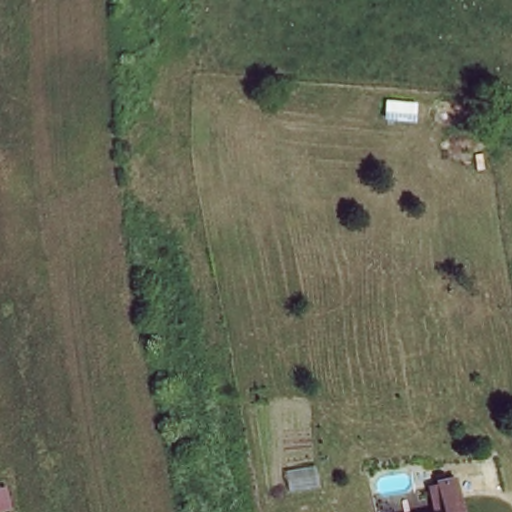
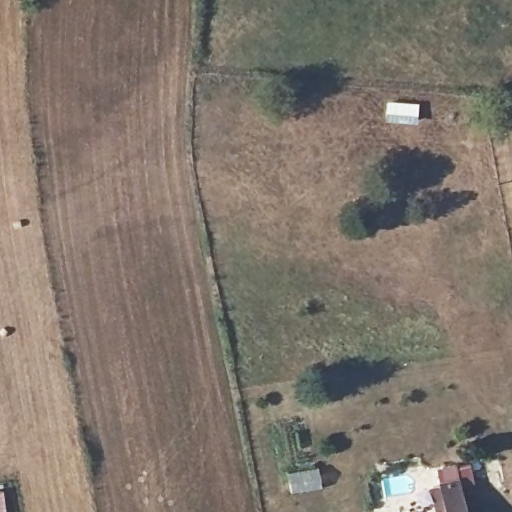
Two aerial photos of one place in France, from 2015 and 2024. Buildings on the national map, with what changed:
unchanged [(460,482),(464,512),(426,512),(423,490),(460,482)]

